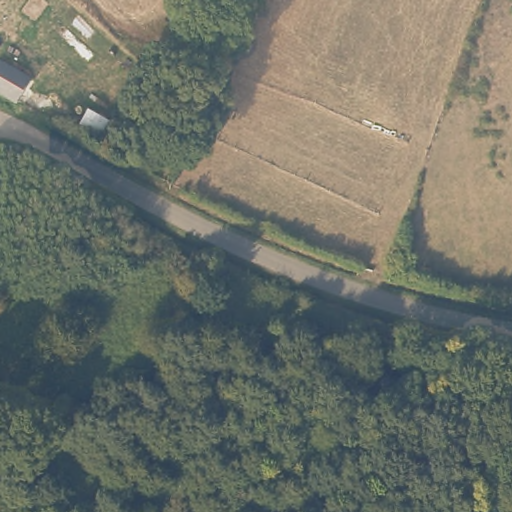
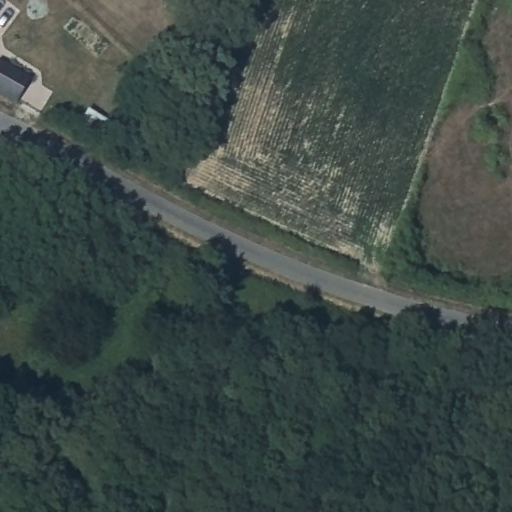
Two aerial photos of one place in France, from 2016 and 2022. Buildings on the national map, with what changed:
unchanged [(28,80),(17,105),(0,94),(0,64),(28,80)]

